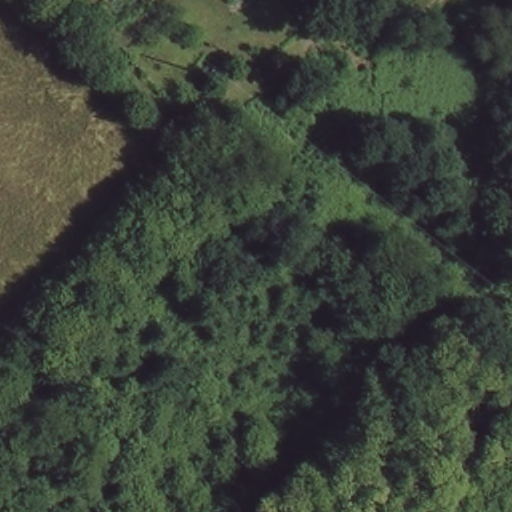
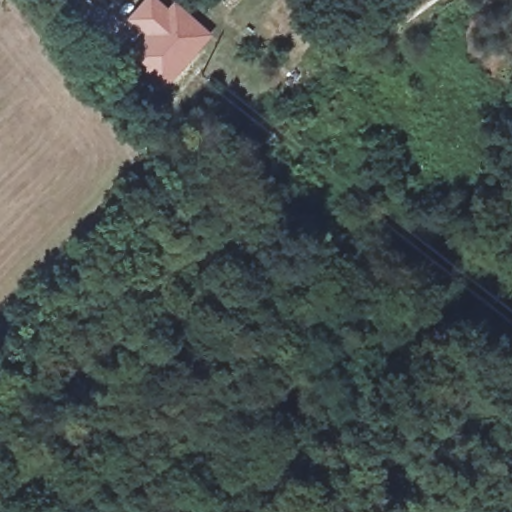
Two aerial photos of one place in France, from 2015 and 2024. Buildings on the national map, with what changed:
new [(142,0),(160,0),(166,6),(172,0),(174,0),(211,32),(161,86),(115,45),(118,41),(111,36),(142,0)]

